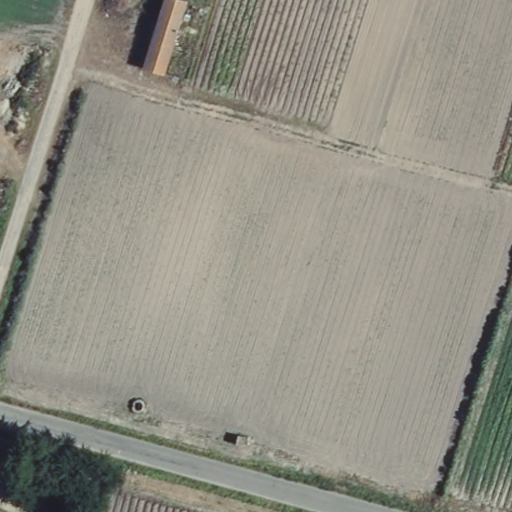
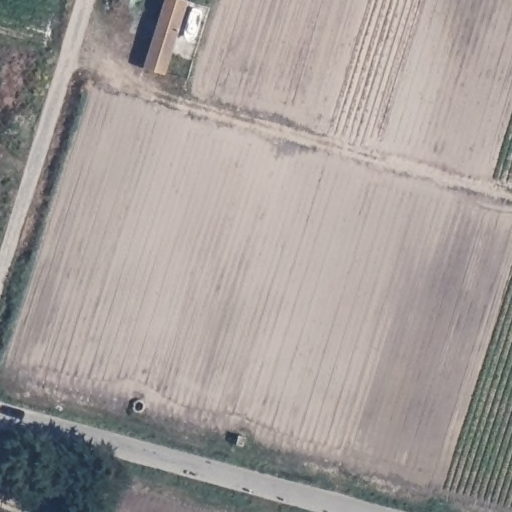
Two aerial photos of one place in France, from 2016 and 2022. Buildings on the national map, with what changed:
unchanged [(140,69),(163,0),(185,0),(161,76),(140,69)]
unchanged [(13,512),(0,512),(0,508),(13,512)]

